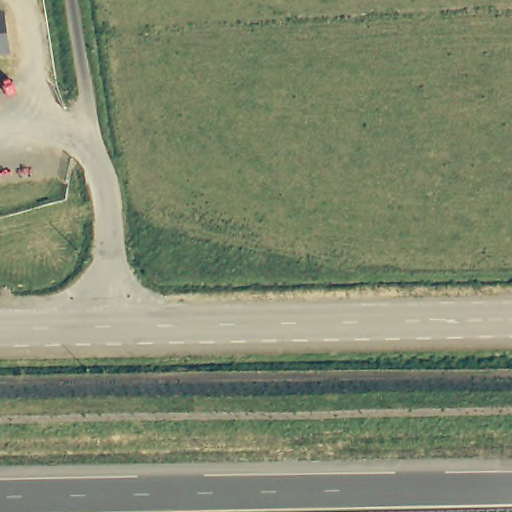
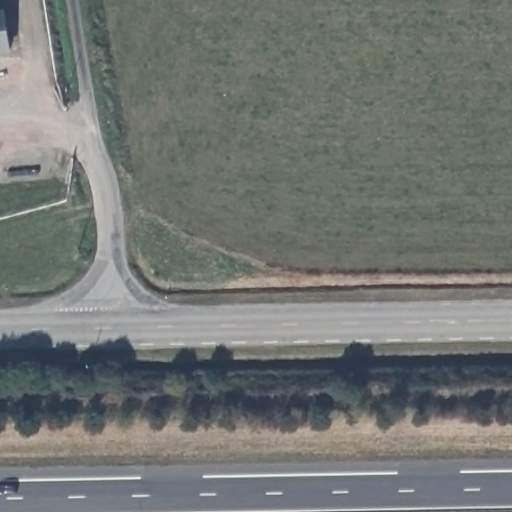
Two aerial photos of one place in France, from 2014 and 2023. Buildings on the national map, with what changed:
unchanged [(0,13),(3,12),(9,52),(0,54),(0,13)]

